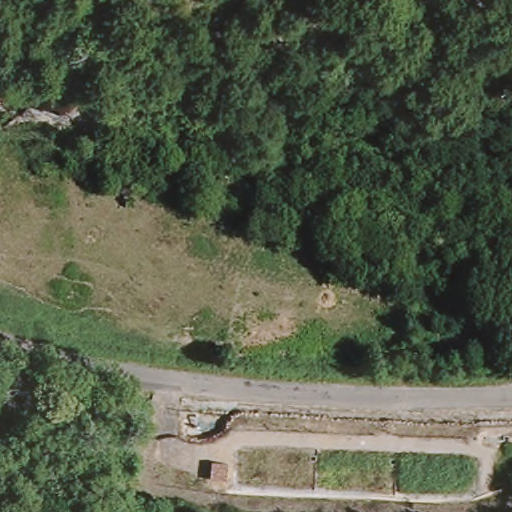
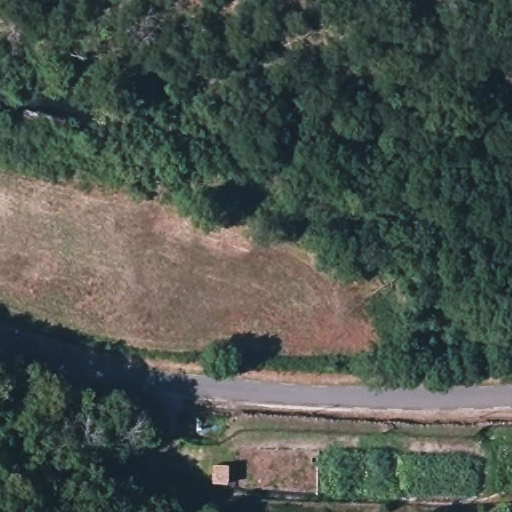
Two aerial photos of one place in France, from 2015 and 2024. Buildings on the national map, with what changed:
unchanged [(214,465),(229,465),(228,484),(213,483),(214,465)]

